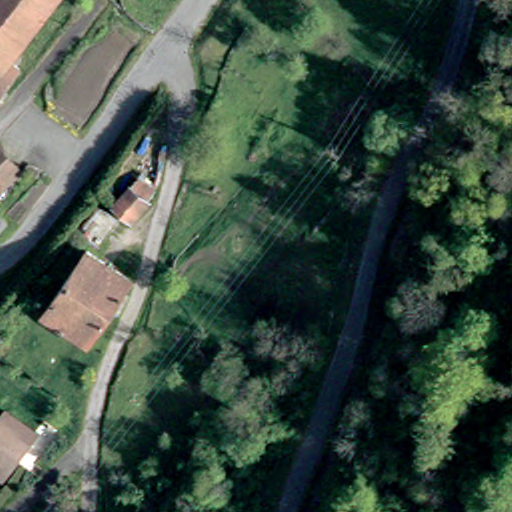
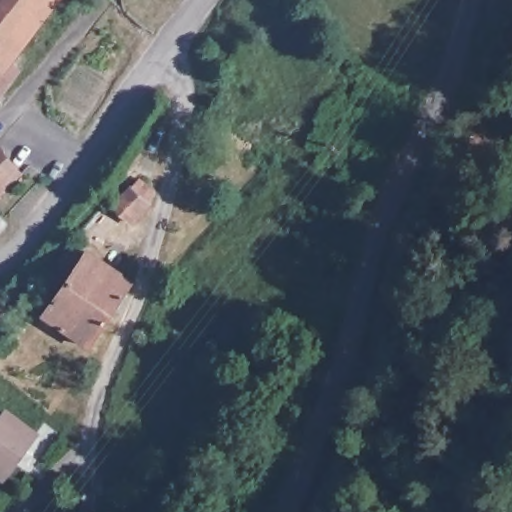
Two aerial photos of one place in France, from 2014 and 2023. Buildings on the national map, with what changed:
unchanged [(25,58),(0,92),(0,0),(53,0),(15,50),(25,58)]
unchanged [(20,169),(0,190),(0,156),(3,152),(20,169)]
unchanged [(153,200),(130,224),(122,217),(100,244),(83,231),(103,199),(115,201),(137,185),(153,200)]
unchanged [(85,344),(40,314),(83,250),(127,279),(120,290),(128,296),(127,300),(115,322),(104,315),(85,344)]
unchanged [(0,476),(0,419),(5,412),(32,434),(0,476)]

